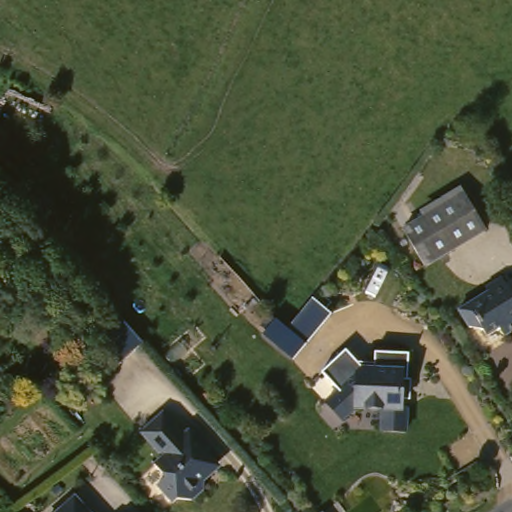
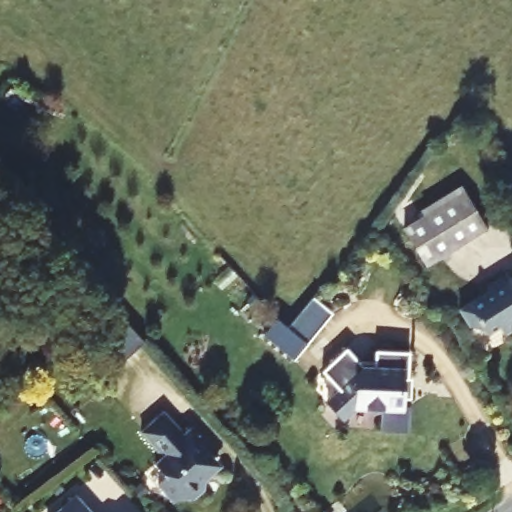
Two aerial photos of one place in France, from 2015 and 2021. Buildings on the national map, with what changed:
unchanged [(423,262),(409,240),(466,204),(480,226),(423,262)]
unchanged [(512,294),(512,335),(501,341),(493,330),(480,337),(477,332),(462,329),(453,314),(490,293),(485,286),(501,276),(512,294)]
unchanged [(277,322),(288,329),(311,301),(332,316),(292,362),(263,338),(277,322)]
unchanged [(117,313),(144,343),(120,364),(94,334),(117,313)]
unchanged [(382,434),(382,414),(357,411),(343,425),(330,411),(343,396),(322,374),(347,353),(359,366),(375,365),(376,356),(407,356),(405,404),(411,405),(409,435),(382,434)]
unchanged [(191,440),(198,434),(217,456),(212,461),(219,468),(217,477),(209,483),(209,497),(198,505),(180,503),(172,509),(157,491),(167,483),(155,469),(164,461),(141,435),(167,414),(191,440)]
unchanged [(74,500),(84,512),(60,512),(74,500)]

